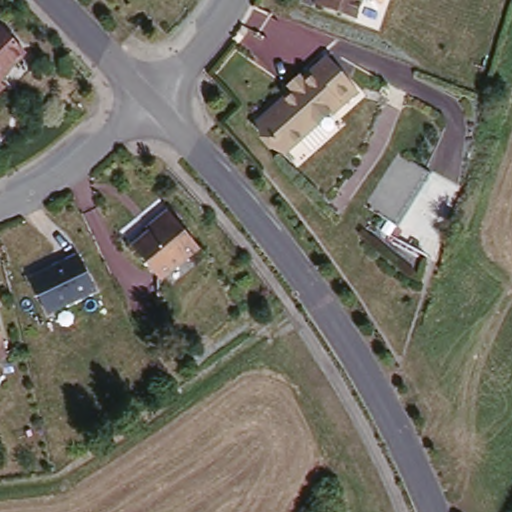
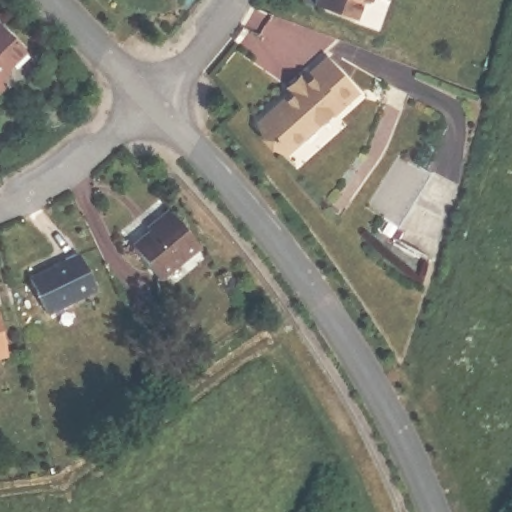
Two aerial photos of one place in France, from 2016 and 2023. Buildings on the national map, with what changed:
unchanged [(315,2),(316,0),(363,0),(357,17),(315,2)]
unchanged [(1,84),(4,87),(0,92),(0,28),(29,56),(1,84)]
unchanged [(286,84),(299,73),(302,76),(325,55),(335,66),(357,90),(330,112),(329,110),(283,151),(256,121),(291,90),(286,84)]
unchanged [(409,151),(439,170),(407,222),(376,203),(409,151)]
unchanged [(155,221),(153,217),(166,206),(197,243),(156,275),(129,242),(155,221)]
unchanged [(79,256),(96,291),(47,315),(30,280),(79,256)]
unchanged [(0,357),(0,310),(7,355),(0,357)]

